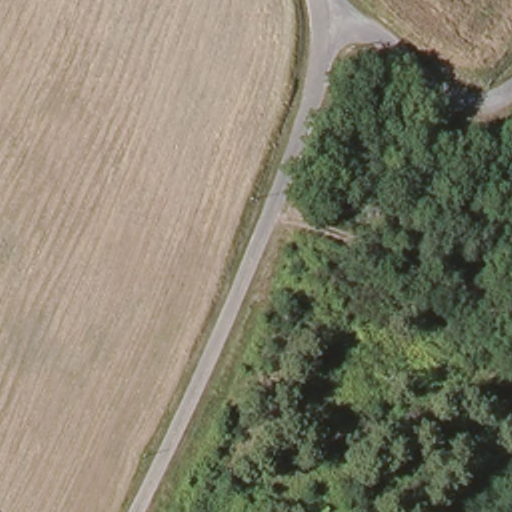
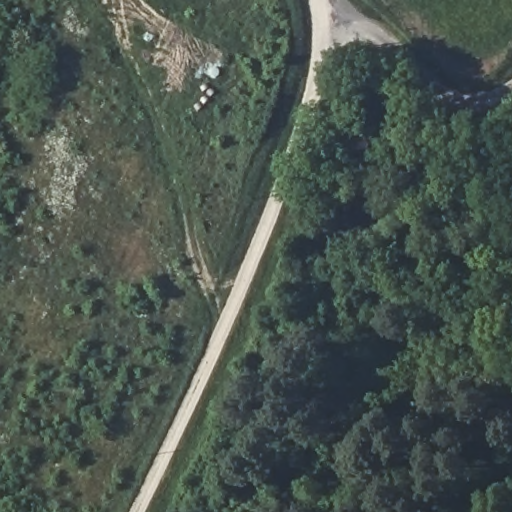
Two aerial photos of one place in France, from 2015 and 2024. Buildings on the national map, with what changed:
unchanged [(180,471),(209,494),(200,512),(178,512),(164,504),(180,471)]

